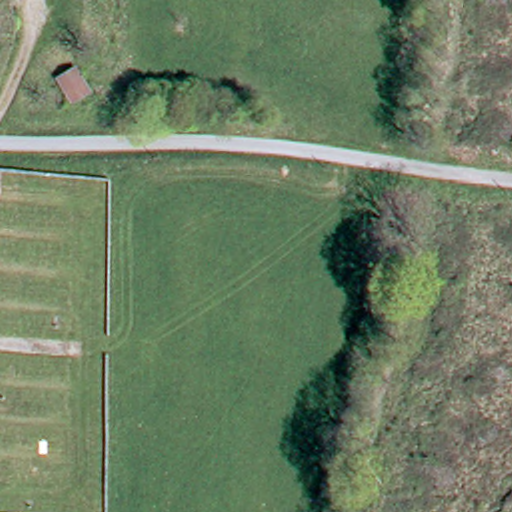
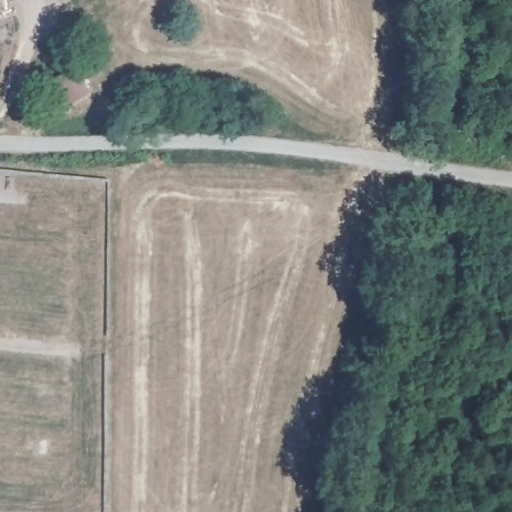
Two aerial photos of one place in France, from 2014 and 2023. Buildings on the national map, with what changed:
unchanged [(58,85),(75,75),(89,99),(72,109),(58,85)]

